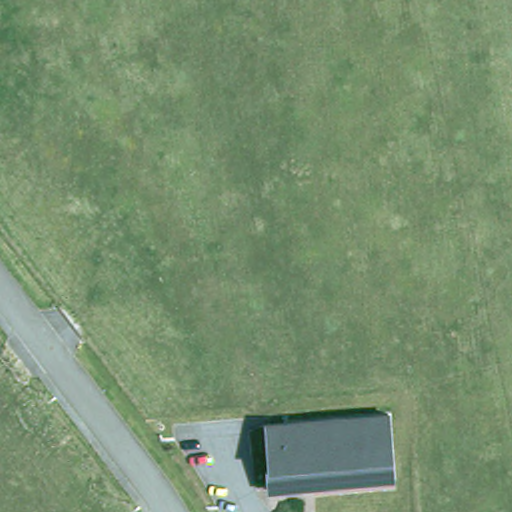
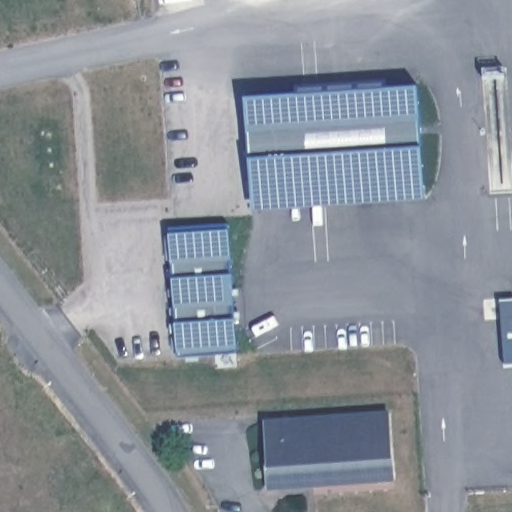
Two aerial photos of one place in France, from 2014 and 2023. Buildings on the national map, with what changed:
new [(416,85),(423,199),(252,211),(245,96),(416,85)]
new [(228,222),(238,355),(176,359),(167,227),(228,222)]
unchanged [(392,482),(268,490),(266,420),(389,411),(392,482)]

